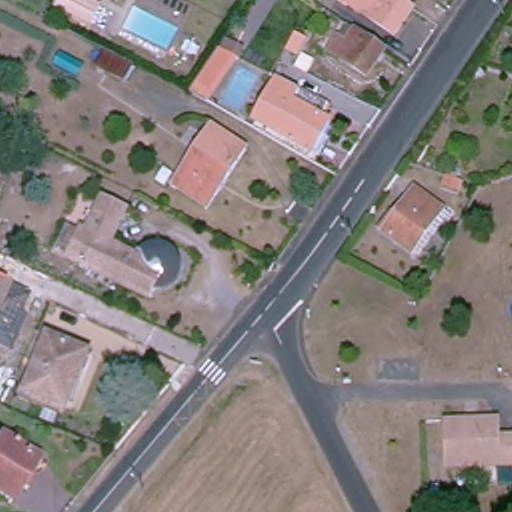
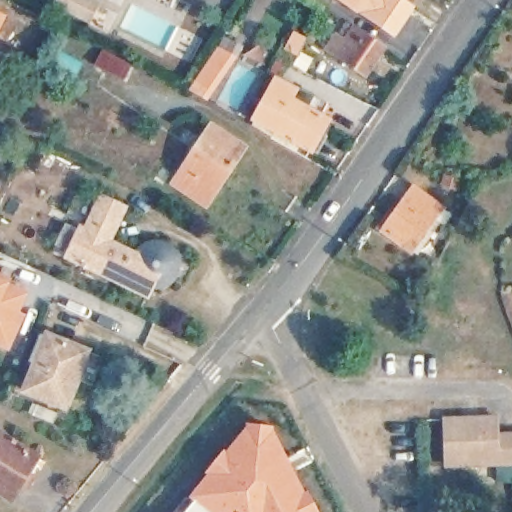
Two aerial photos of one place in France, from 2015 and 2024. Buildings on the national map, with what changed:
new [(99,0),(103,2),(94,21),(57,3),(59,0),(99,0)]
unchanged [(405,39),(359,6),(350,0),(405,0),(423,13),(405,39)]
new [(0,26),(0,11),(6,14),(0,26)]
unchanged [(342,50),(361,23),(390,43),(370,70),(342,50)]
unchanged [(204,96),(192,90),(218,52),(229,58),(204,96)]
unchanged [(321,116),(330,121),(312,150),(272,127),(269,132),(254,122),(281,73),(330,102),(321,116)]
unchanged [(195,146),(211,120),(219,126),(247,145),(210,200),(175,177),(195,146)]
unchanged [(393,209),(397,211),(417,187),(446,209),(454,214),(446,226),(438,219),(414,251),(379,225),(393,209)]
unchanged [(140,294),(72,260),(76,252),(67,248),(79,223),(88,228),(106,192),(125,202),(108,237),(139,253),(144,248),(152,245),(158,246),(165,248),(170,252),(174,257),(175,263),(175,268),(173,273),(171,278),(167,282),(161,285),(157,286),(148,299),(140,294)]
new [(8,284),(0,281),(0,272),(12,278),(8,284)]
unchanged [(26,316),(9,351),(0,347),(0,281),(8,284),(28,294),(20,314),(26,316)]
unchanged [(23,391),(48,333),(88,352),(62,408),(23,391)]
unchanged [(512,430),(512,470),(458,470),(440,471),(439,412),(450,411),(505,411),(505,430),(512,430)]
new [(191,501),(186,497),(215,458),(237,434),(245,423),(273,426),(280,443),(315,505),(318,512),(182,512),(191,501)]
unchanged [(17,488),(10,498),(0,491),(0,440),(2,436),(37,458),(27,474),(36,481),(28,493),(17,488)]

